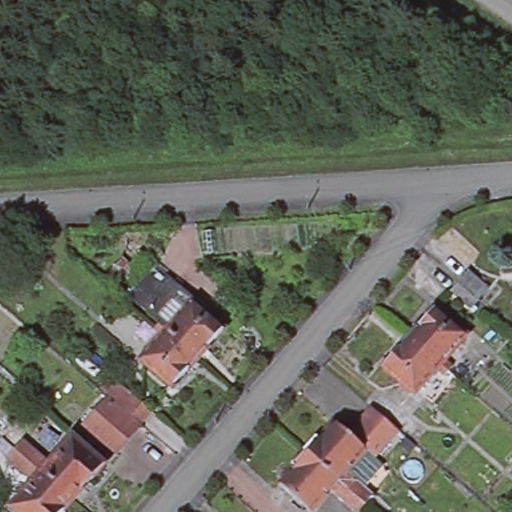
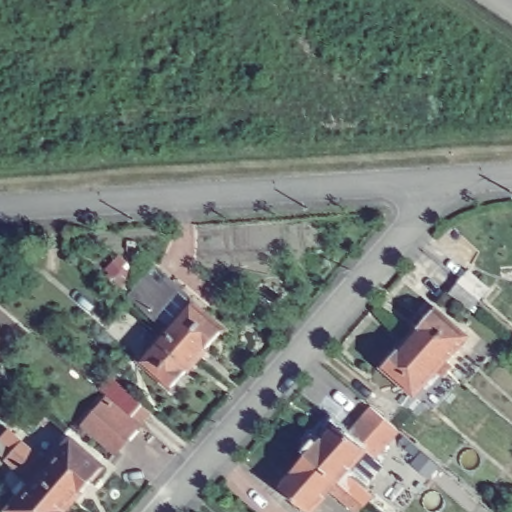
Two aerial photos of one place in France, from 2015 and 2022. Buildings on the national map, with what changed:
unchanged [(448,293),(458,281),(464,274),(484,291),(478,298),(468,310),(448,293)]
unchanged [(161,320),(157,323),(143,310),(131,300),(149,278),(161,289),(167,282),(190,302),(169,326),(161,320)]
unchanged [(165,330),(157,323),(161,320),(169,326),(190,302),(221,330),(197,358),(165,330)]
unchanged [(433,309),(464,336),(443,361),(450,368),(445,375),(406,340),(433,309)]
unchanged [(171,387),(140,360),(160,336),(152,330),(157,323),(165,330),(197,358),(171,387)]
unchanged [(445,375),(441,378),(434,371),(413,395),(382,367),(406,340),(445,375)]
unchanged [(118,405),(129,392),(151,411),(140,424),(118,405)]
unchanged [(138,427),(114,453),(82,426),(105,400),(138,427)]
unchanged [(366,410),(394,436),(380,452),(369,443),(364,450),(363,449),(346,434),(366,410)]
unchanged [(313,437),(317,440),(333,423),(346,434),(363,449),(343,471),(370,495),(362,505),(300,452),(313,437)]
unchanged [(3,461),(0,459),(0,443),(3,440),(12,430),(22,438),(50,463),(73,436),(105,464),(72,502),(63,512),(8,512),(7,511),(30,485),(3,461)]
unchanged [(171,450),(161,462),(142,443),(151,433),(171,450)]
unchanged [(352,512),(327,490),(308,512),(278,485),(293,468),(289,465),(300,452),(362,505),(355,512),(352,512)]
unchanged [(7,511),(8,512),(0,512),(0,509),(2,506),(7,511)]

